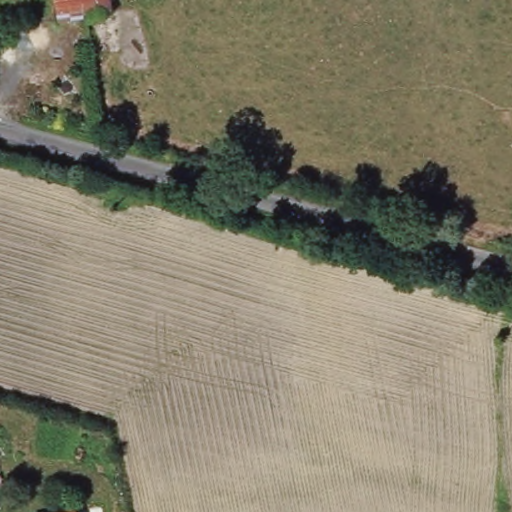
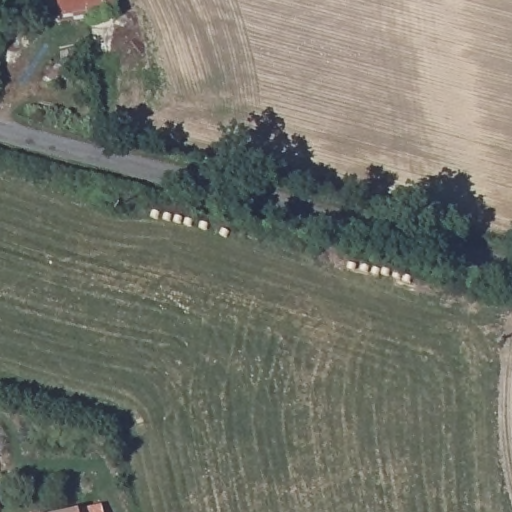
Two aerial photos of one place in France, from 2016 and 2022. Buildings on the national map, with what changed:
unchanged [(56,0),(107,0),(110,14),(82,19),(59,22),(56,0)]
unchanged [(76,512),(66,512),(76,510),(76,512)]

